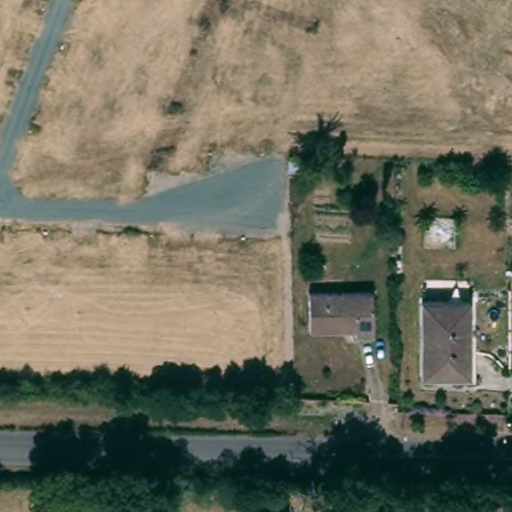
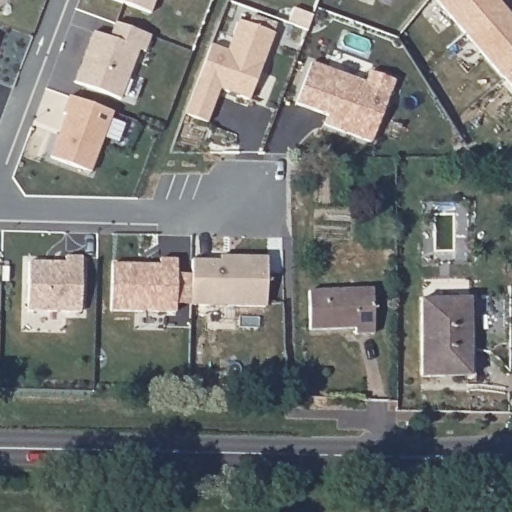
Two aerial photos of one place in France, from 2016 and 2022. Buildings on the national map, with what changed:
new [(150,15),(112,0),(156,0),(150,15)]
new [(512,17),(512,87),(436,0),(498,0),(512,17)]
new [(250,101),(220,90),(208,123),(186,115),(211,45),(226,50),(239,22),(274,35),(250,101)]
new [(94,33),(110,39),(115,23),(150,37),(145,53),(139,51),(120,100),(75,83),(94,33)]
new [(311,63),(365,84),(370,73),(395,82),(371,143),(325,125),(328,116),(296,104),(311,63)]
new [(66,116),(62,114),(69,97),(113,113),(90,173),(50,158),(66,116)]
new [(220,262),(220,257),(232,258),(267,258),(265,308),(191,306),(192,261),(220,262)]
new [(29,263),(65,264),(65,258),(82,258),(80,313),(27,312),(29,263)]
new [(190,305),(175,305),(175,313),(111,311),(112,265),(160,266),(160,260),(177,261),(176,275),(191,276),(190,305)]
unchanged [(372,288),(371,331),(351,330),(351,325),(305,325),(305,287),(372,288)]
unchanged [(472,293),(468,371),(420,369),(422,291),(472,293)]

